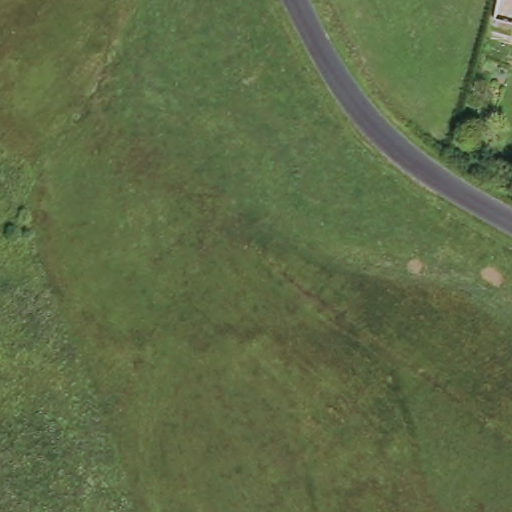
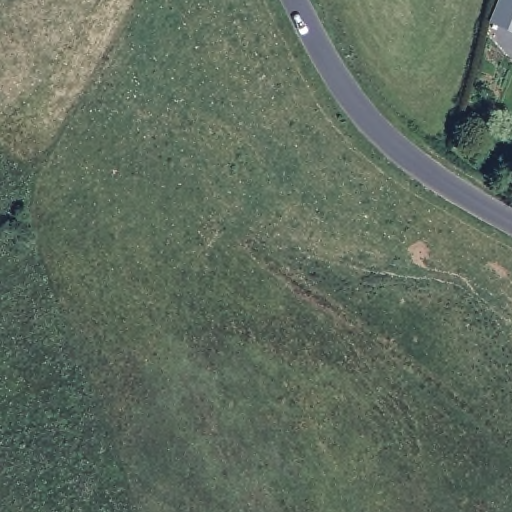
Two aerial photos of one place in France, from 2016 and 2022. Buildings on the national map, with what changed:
unchanged [(505,0),(512,0),(512,18),(503,15),(505,0)]

